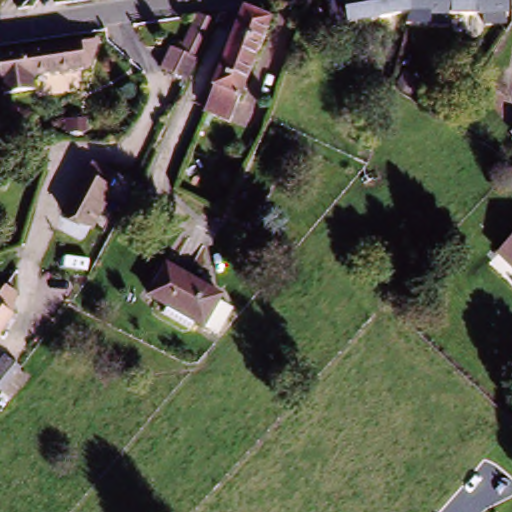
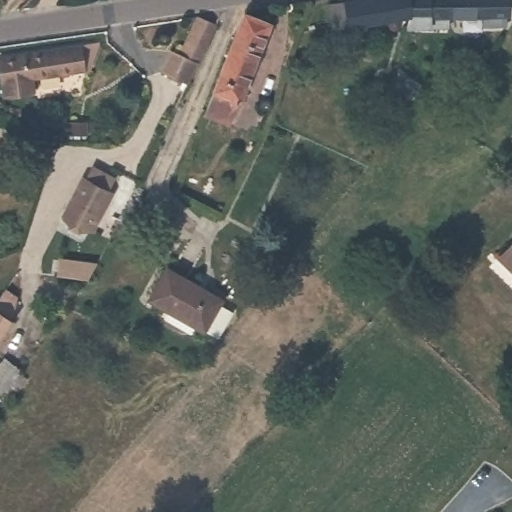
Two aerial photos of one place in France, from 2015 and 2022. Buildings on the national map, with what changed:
unchanged [(334,30),(330,8),(380,0),(410,0),(412,19),(334,30)]
unchanged [(488,19),(412,19),(410,0),(510,0),(510,19),(506,19),(505,27),(488,27),(488,19)]
unchanged [(268,32),(230,132),(205,121),(242,22),(268,32)]
unchanged [(165,79),(175,59),(183,63),(199,24),(218,30),(200,68),(195,80),(190,90),(165,79)]
unchanged [(0,81),(0,58),(100,43),(96,65),(33,75),(35,89),(2,95),(0,81)]
unchanged [(88,244),(62,229),(82,192),(85,193),(92,179),(113,192),(107,204),(108,206),(88,244)]
unchanged [(512,276),(497,264),(512,248),(512,276)]
unchanged [(150,298),(166,268),(220,298),(217,303),(230,310),(218,334),(204,328),(195,323),(191,330),(165,316),(169,309),(150,298)]
unchanged [(10,289),(22,297),(14,320),(0,341),(0,304),(10,289)]
unchanged [(13,399),(5,393),(4,395),(0,392),(0,371),(10,359),(23,369),(22,371),(30,377),(13,399)]

